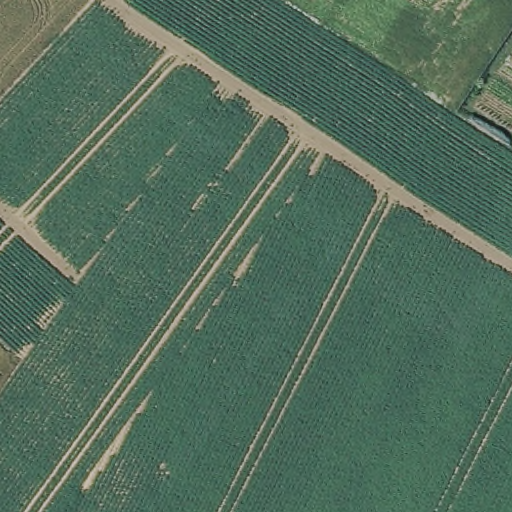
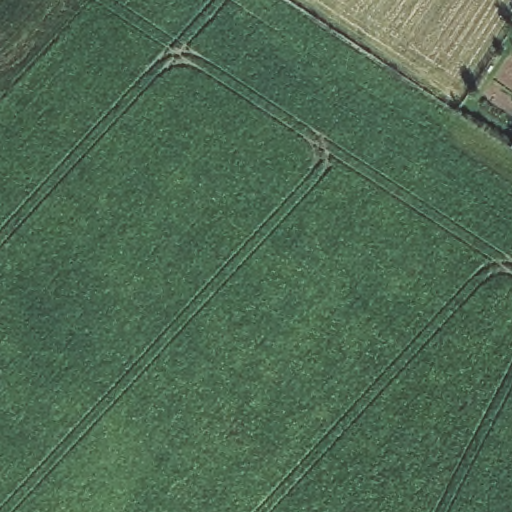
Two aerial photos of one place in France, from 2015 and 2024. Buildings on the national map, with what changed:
[]

